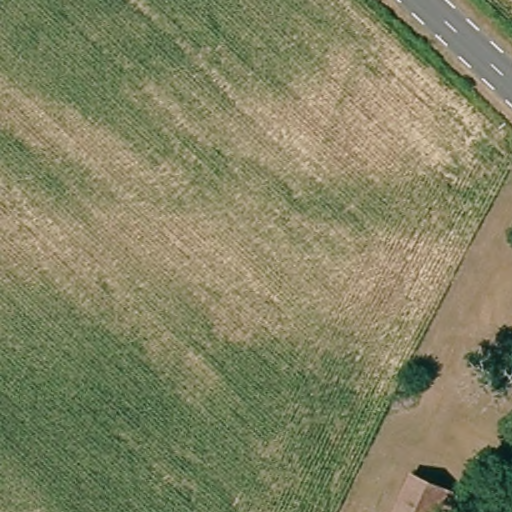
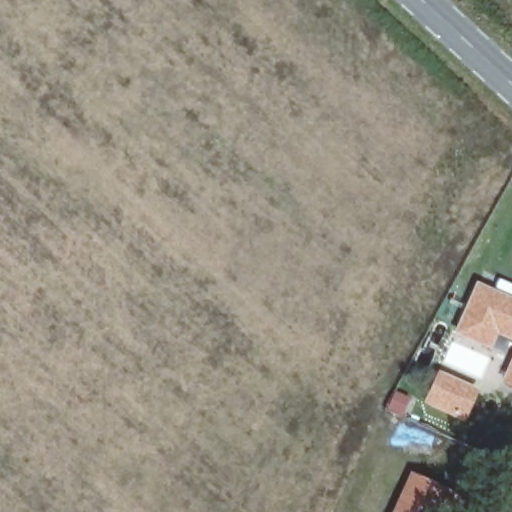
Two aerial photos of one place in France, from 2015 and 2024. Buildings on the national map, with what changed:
new [(476,281),(512,297),(512,341),(497,335),(490,349),(453,332),(476,281)]
new [(500,383),(512,354),(512,389),(500,383)]
new [(437,370),(480,391),(465,422),(421,403),(437,370)]
unchanged [(409,476),(438,485),(429,512),(398,512),(409,476)]

